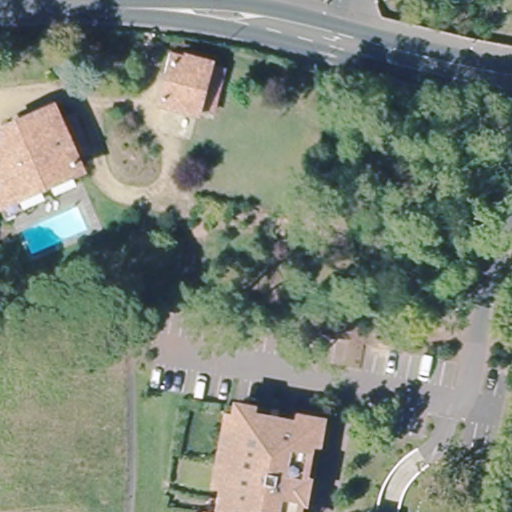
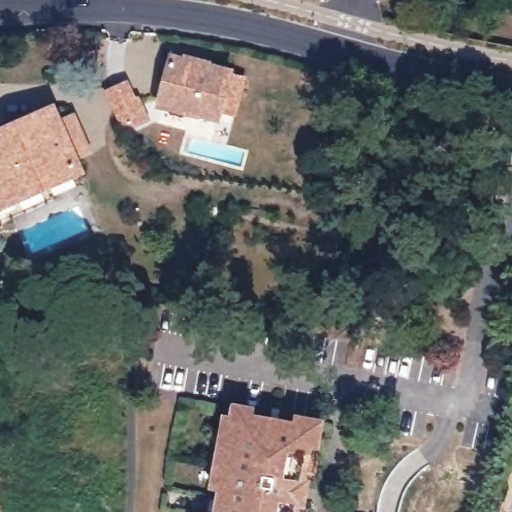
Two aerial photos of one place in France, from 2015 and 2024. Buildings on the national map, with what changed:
unchanged [(211,65),(211,67),(225,72),(215,114),(199,110),(198,112),(164,102),(175,55),(211,65)]
new [(104,90),(131,77),(153,120),(125,134),(104,90)]
unchanged [(0,145),(13,139),(10,130),(52,111),(57,123),(71,117),(86,152),(73,157),(77,170),(0,203),(0,145)]
unchanged [(224,496),(225,487),(216,485),(219,465),(225,467),(231,436),(225,435),(230,415),(236,415),(237,411),(312,427),(322,429),(319,445),(310,442),(308,451),(312,452),(306,480),(309,481),(305,503),(302,502),(300,512),(215,512),(219,496),(224,496)]

